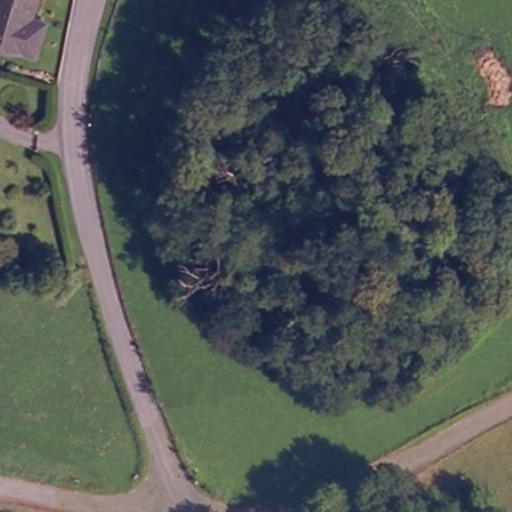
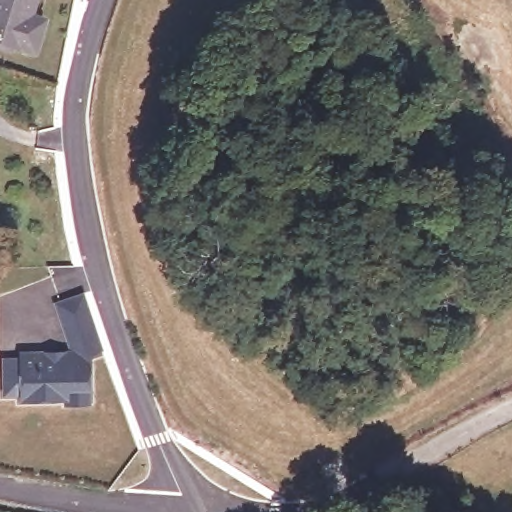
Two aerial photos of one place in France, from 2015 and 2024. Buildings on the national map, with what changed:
unchanged [(0,0),(41,0),(36,19),(51,23),(41,51),(0,38),(0,0)]
new [(41,403),(19,403),(19,397),(2,398),(2,362),(19,362),(19,357),(41,356),(59,356),(68,356),(56,306),(83,298),(100,354),(85,358),(86,392),(86,403),(41,403)]

